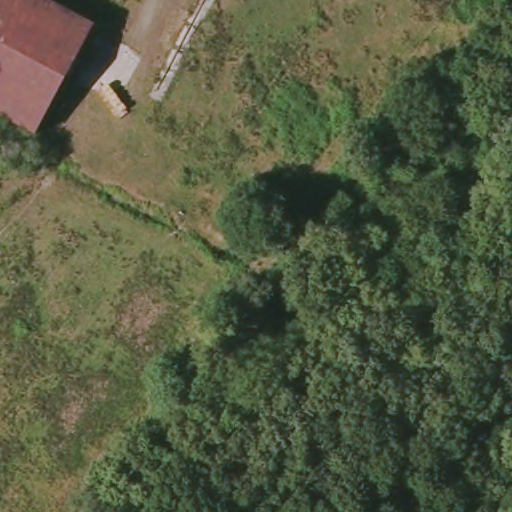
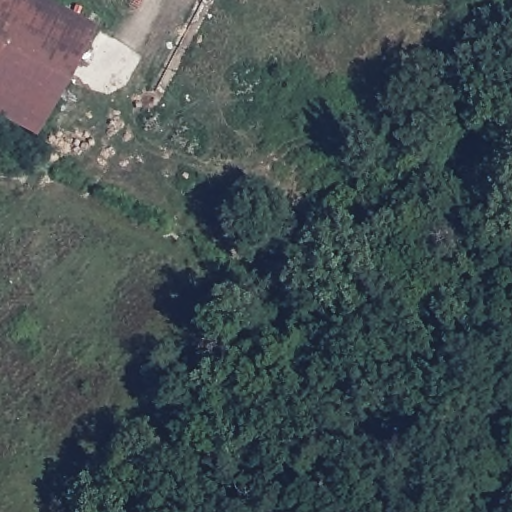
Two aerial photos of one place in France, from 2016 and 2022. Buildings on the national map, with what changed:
unchanged [(32,134),(0,116),(0,0),(49,0),(92,24),(32,134)]

